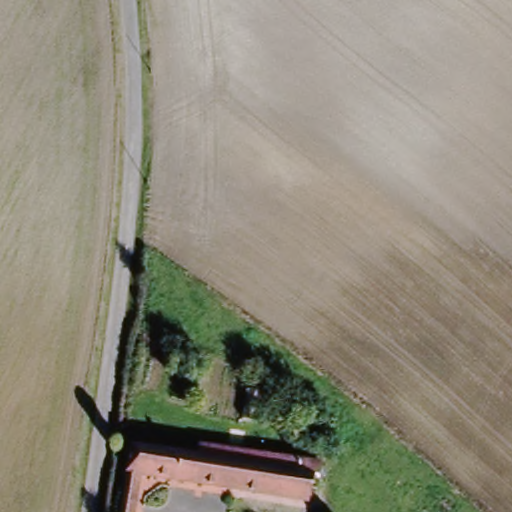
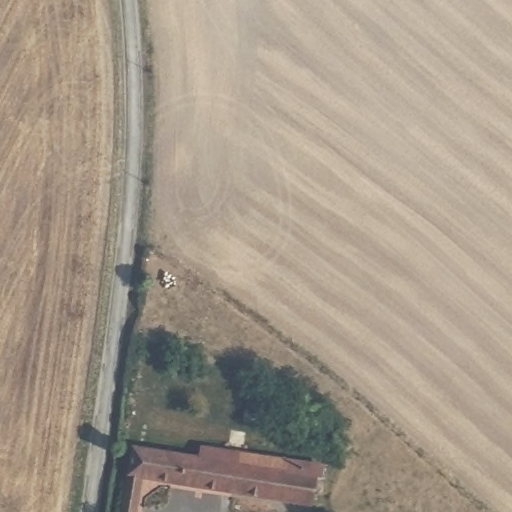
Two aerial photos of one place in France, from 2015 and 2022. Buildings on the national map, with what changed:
unchanged [(318,474),(309,474),(306,500),(138,474),(132,512),(120,512),(129,446),(199,455),(200,443),(224,447),(252,450),(295,457),(319,462),(318,474)]

